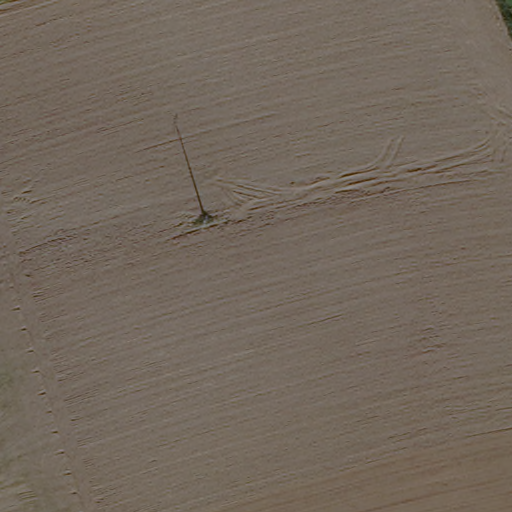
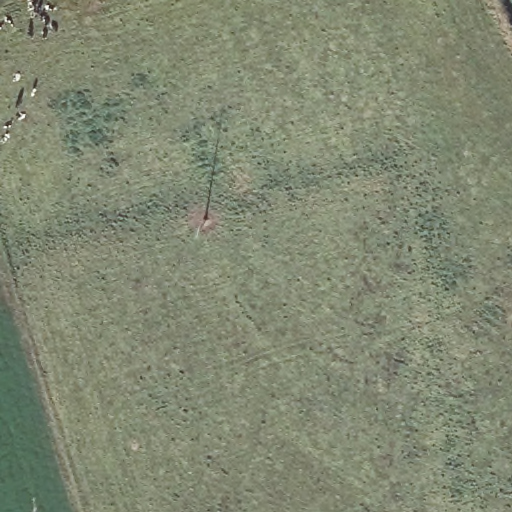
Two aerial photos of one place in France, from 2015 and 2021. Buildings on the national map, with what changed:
[]

